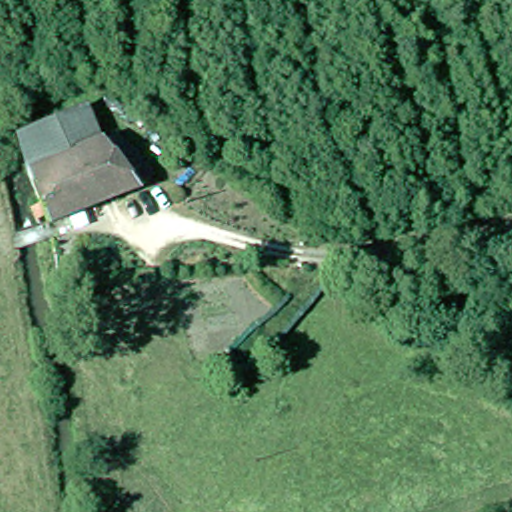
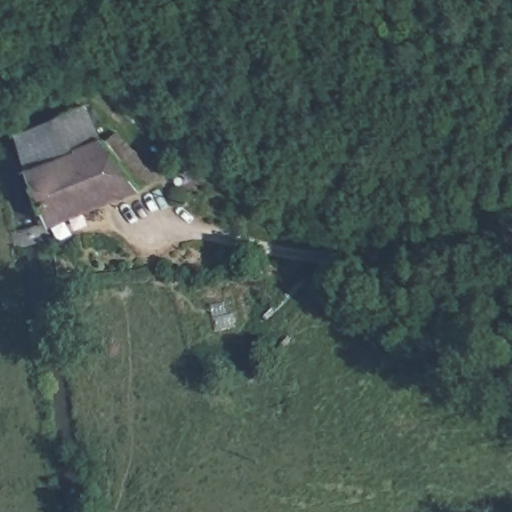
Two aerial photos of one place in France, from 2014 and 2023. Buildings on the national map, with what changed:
unchanged [(82,117),(97,153),(36,170),(20,135),(82,117)]
unchanged [(36,170),(97,153),(109,149),(127,174),(140,166),(151,182),(140,190),(50,222),(36,170)]
unchanged [(320,274),(315,281),(295,311),(280,302),(294,283),(302,272),(320,274)]
unchanged [(287,312),(250,367),(232,354),(269,300),(287,312)]

